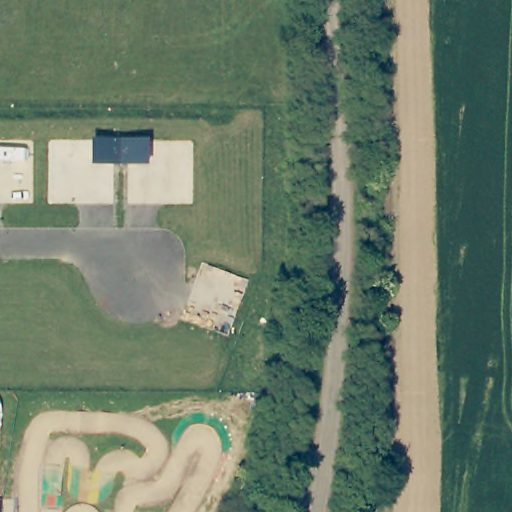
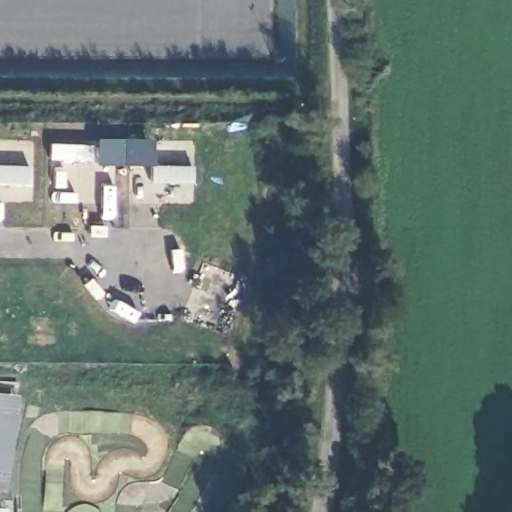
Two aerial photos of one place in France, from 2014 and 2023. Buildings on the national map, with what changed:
unchanged [(149,139),(149,166),(93,166),(93,139),(149,139)]
new [(5,489),(0,489),(0,394),(17,395),(5,489)]

